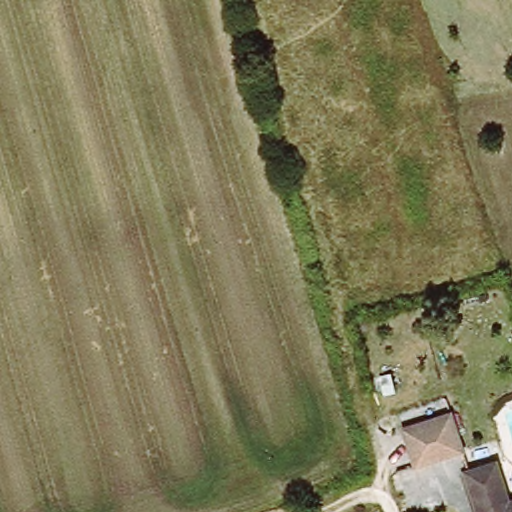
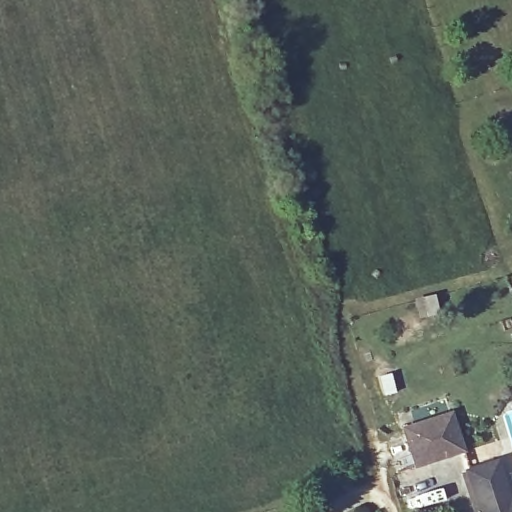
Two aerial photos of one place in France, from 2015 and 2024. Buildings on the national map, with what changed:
unchanged [(460,452),(411,467),(401,427),(447,412),(460,452)]
unchanged [(465,472),(497,463),(507,501),(512,500),(512,512),(477,512),(465,472)]

